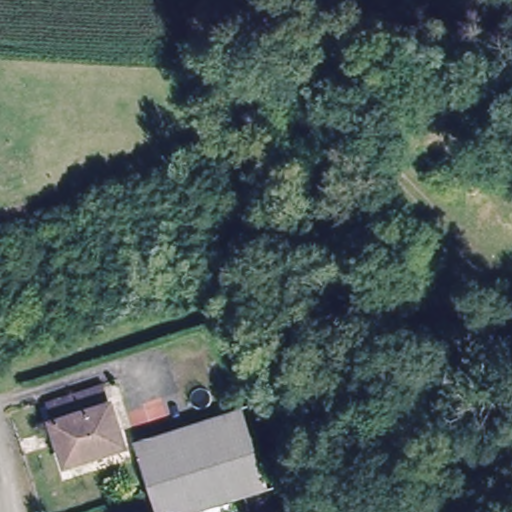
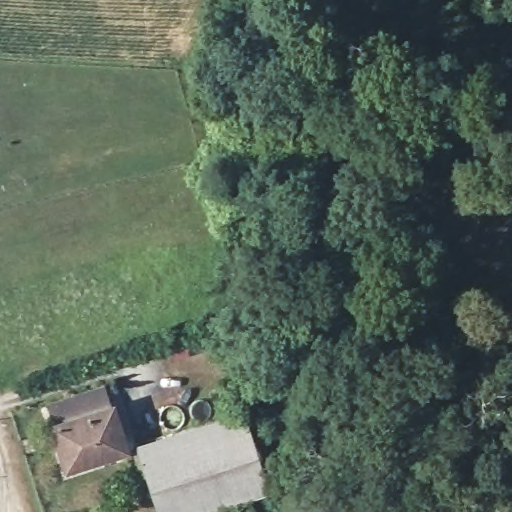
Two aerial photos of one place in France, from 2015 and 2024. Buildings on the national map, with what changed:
unchanged [(107,400),(99,404),(50,421),(44,400),(95,386),(102,383),(107,400)]
unchanged [(123,444),(91,456),(87,446),(60,455),(50,421),(99,404),(107,400),(123,444)]
unchanged [(265,478),(162,510),(154,480),(141,434),(243,403),(265,478)]
unchanged [(269,493),(211,512),(163,512),(162,510),(265,478),(269,493)]

